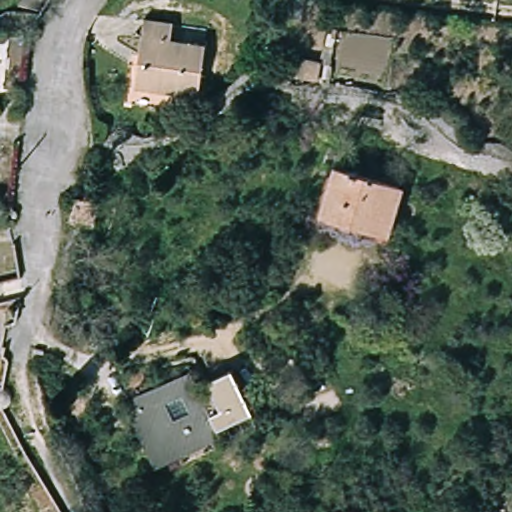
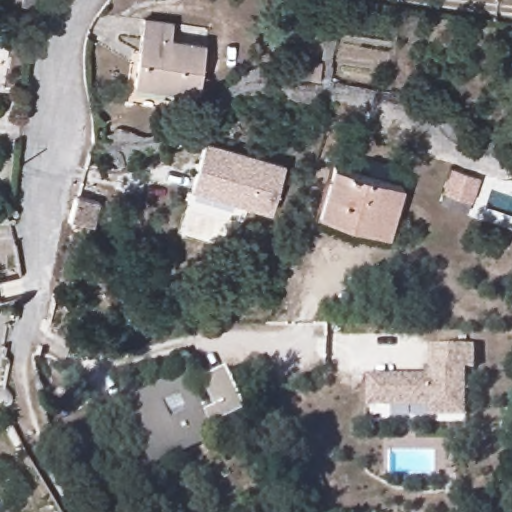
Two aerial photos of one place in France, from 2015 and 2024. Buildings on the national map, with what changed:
unchanged [(42,4),(25,4),(25,0),(42,0),(42,4)]
unchanged [(173,21),(172,40),(208,44),(202,95),(135,88),(137,62),(141,37),(143,18),(173,21)]
unchanged [(296,75),(298,54),(322,56),(320,77),(296,75)]
new [(285,165),(270,215),(190,191),(205,142),(285,165)]
unchanged [(323,211),(340,160),(405,179),(388,232),(323,211)]
new [(480,179),(470,203),(440,193),(449,168),(480,179)]
unchanged [(72,196),(95,202),(90,226),(67,222),(72,196)]
unchanged [(384,247),(318,225),(323,211),(388,232),(384,247)]
new [(425,376),(425,368),(430,368),(430,346),(475,346),(475,368),(466,369),(468,418),(431,419),(431,409),(368,409),(367,376),(425,376)]
unchanged [(191,369),(212,413),(220,409),(207,381),(232,369),(252,411),(218,427),(220,429),(157,460),(129,399),(191,369)]

